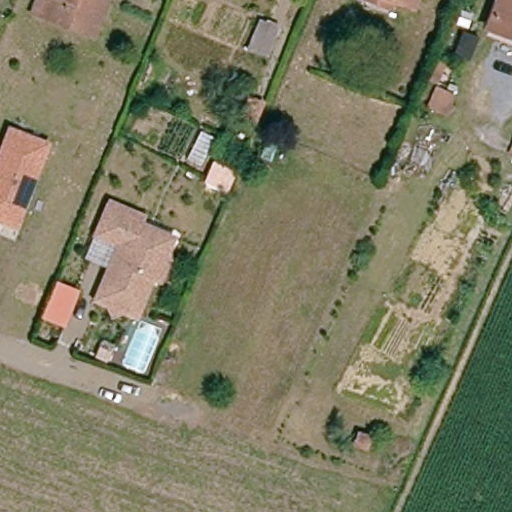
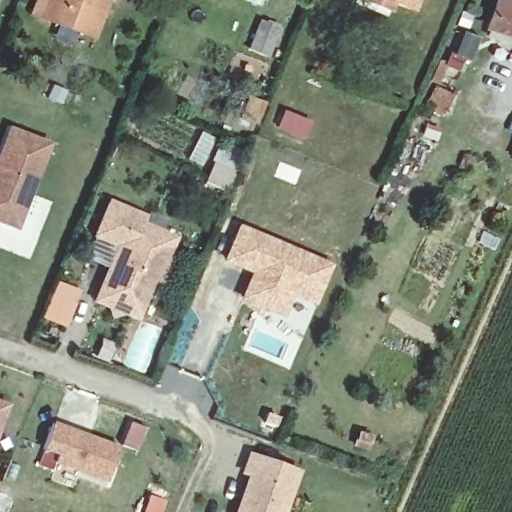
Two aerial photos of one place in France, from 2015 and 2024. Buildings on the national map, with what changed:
unchanged [(40,0),(99,0),(104,2),(97,20),(89,39),(34,17),(40,0)]
unchanged [(359,0),(418,0),(413,12),(396,5),(392,14),(370,5),(359,0)]
unchanged [(512,0),(512,36),(488,26),(499,0),(512,0)]
unchanged [(249,25),(266,32),(253,62),(237,54),(249,25)]
unchanged [(242,129),(227,123),(236,103),(250,109),(242,129)]
unchanged [(46,143),(13,227),(0,223),(0,150),(8,130),(46,143)]
unchanged [(512,138),(512,156),(506,154),(512,138)]
new [(221,141),(244,151),(226,193),(203,185),(221,141)]
unchanged [(157,278),(150,276),(132,316),(118,309),(109,312),(105,303),(91,297),(116,241),(94,231),(108,197),(142,212),(138,220),(171,235),(164,251),(160,252),(167,256),(157,278)]
new [(238,224),(332,263),(313,306),(292,297),(279,321),(237,302),(250,274),(222,262),(238,224)]
unchanged [(59,317),(38,309),(48,285),(69,293),(59,317)]
new [(7,397),(0,415),(0,394),(7,397)]
new [(53,465),(57,456),(42,451),(53,423),(118,447),(106,483),(53,465)]
new [(246,483),(251,469),(246,467),(252,450),(298,467),(281,512),(235,512),(243,492),(246,483)]

